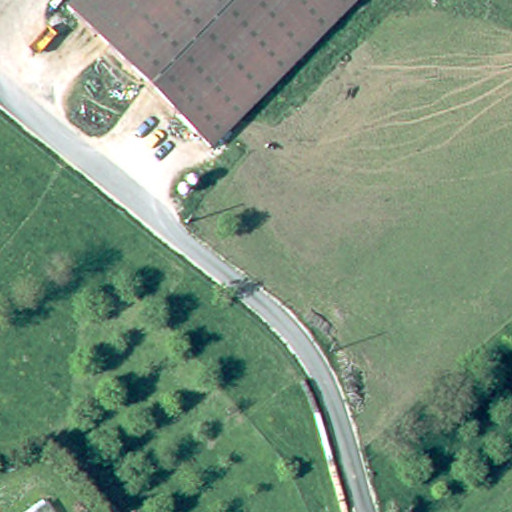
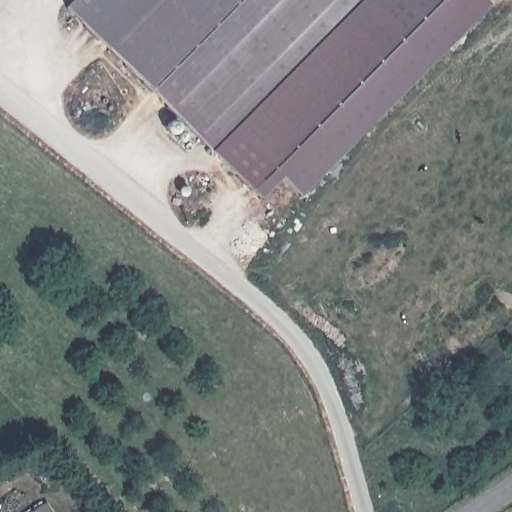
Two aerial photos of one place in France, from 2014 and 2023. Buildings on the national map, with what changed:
unchanged [(72,7),(79,0),(362,0),(211,149),(72,7)]
new [(301,196),(281,176),(261,197),(211,149),(362,0),(487,0),(491,3),(301,196)]

